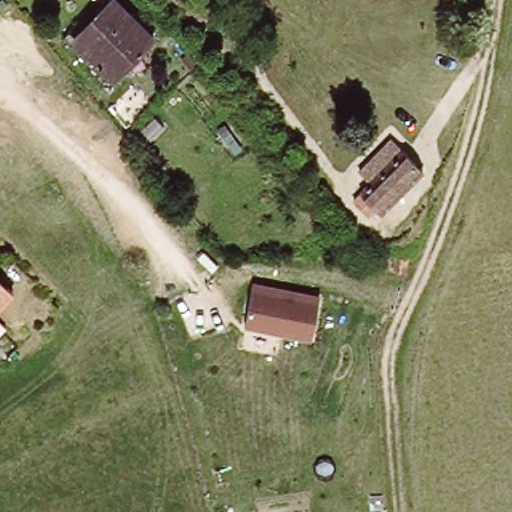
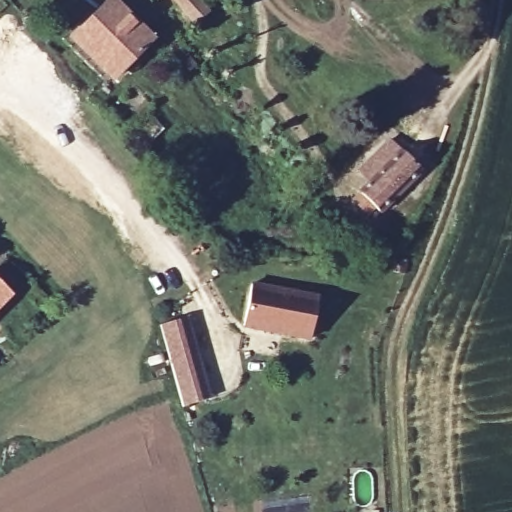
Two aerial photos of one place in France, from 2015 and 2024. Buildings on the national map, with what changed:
unchanged [(72,41),(100,11),(104,15),(118,0),(120,0),(159,37),(117,84),(72,41)]
unchanged [(205,5),(190,19),(173,0),(201,0),(205,5)]
unchanged [(397,139),(407,150),(427,171),(383,214),(363,191),(374,181),(363,170),(369,165),(382,153),(397,139)]
unchanged [(388,252),(404,252),(392,267),(383,264),(388,252)]
unchanged [(252,280),(319,293),(310,340),(242,327),(252,280)]
unchanged [(14,295),(0,310),(0,281),(14,295)]
new [(212,398),(183,406),(160,325),(190,316),(212,398)]

